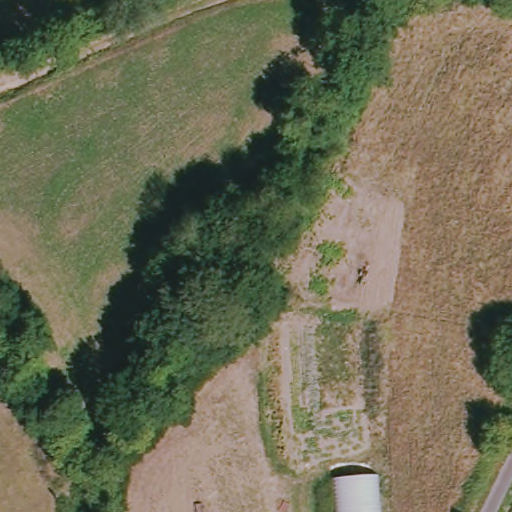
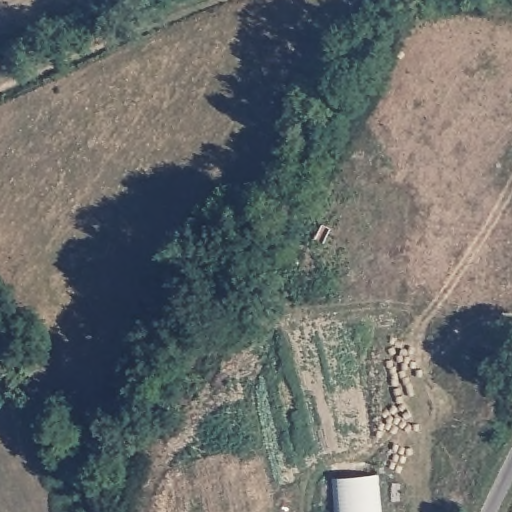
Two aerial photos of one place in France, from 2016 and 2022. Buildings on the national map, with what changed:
unchanged [(373,473),(376,512),(336,512),(334,476),(373,473)]

